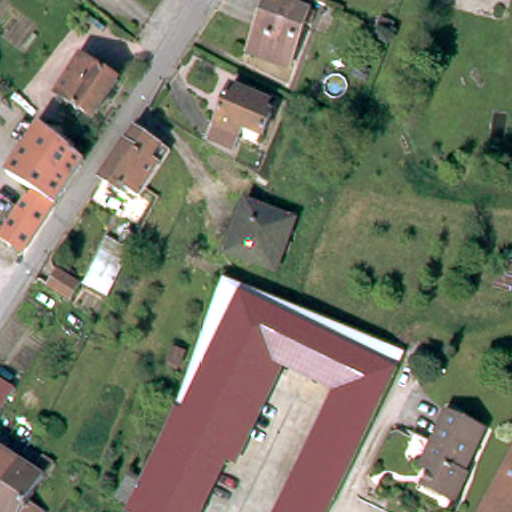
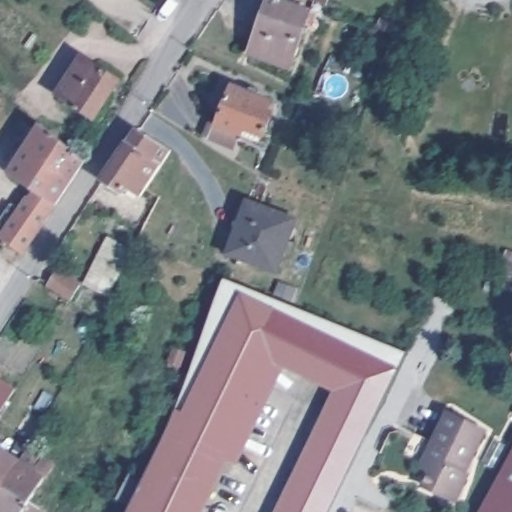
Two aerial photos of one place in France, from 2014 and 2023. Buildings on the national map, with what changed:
unchanged [(308,12),(314,14),(311,21),(306,19),(289,65),(250,51),(267,0),(294,0),(294,1),(309,7),(308,12)]
unchanged [(325,3),(318,0),(326,0),(325,3)]
unchanged [(120,79),(94,116),(58,93),(83,55),(120,79)]
unchanged [(266,110),(268,111),(255,139),(237,132),(229,148),(202,137),(209,120),(212,121),(228,85),(242,90),(244,83),(252,88),(250,94),(269,102),(266,110)]
unchanged [(14,105),(10,111),(5,107),(10,101),(14,105)]
unchanged [(49,201),(18,247),(0,235),(0,230),(6,221),(2,217),(5,212),(10,215),(28,188),(3,170),(35,122),(78,159),(50,202),(49,201)]
unchanged [(121,188),(119,189),(103,177),(126,142),(127,143),(137,128),(171,149),(146,186),(141,194),(129,186),(126,191),(121,188)]
unchanged [(294,222),(276,273),(227,255),(246,204),(294,222)]
unchanged [(112,290),(88,276),(111,232),(115,234),(136,243),(112,290)]
unchanged [(53,276),(61,264),(86,279),(78,292),(53,276)]
unchanged [(296,309),(381,344),(404,354),(394,376),(348,473),(339,490),(329,512),(280,512),(296,477),(337,391),(274,360),(221,472),(202,512),(127,512),(149,466),(157,450),(166,432),(174,414),(186,379),(221,286),(223,280),(296,309)]
unchanged [(183,357),(176,372),(168,368),(174,353),(183,357)]
unchanged [(0,401),(0,380),(9,386),(0,401)]
unchanged [(429,462),(453,413),(488,431),(467,475),(471,476),(458,502),(437,492),(427,488),(434,474),(424,470),(429,462)]
unchanged [(15,457),(0,480),(0,447),(2,448),(15,457)]
unchanged [(479,512),(512,451),(512,512),(479,512)]
unchanged [(40,474),(24,500),(40,511),(39,512),(0,512),(0,480),(15,457),(40,474)]

